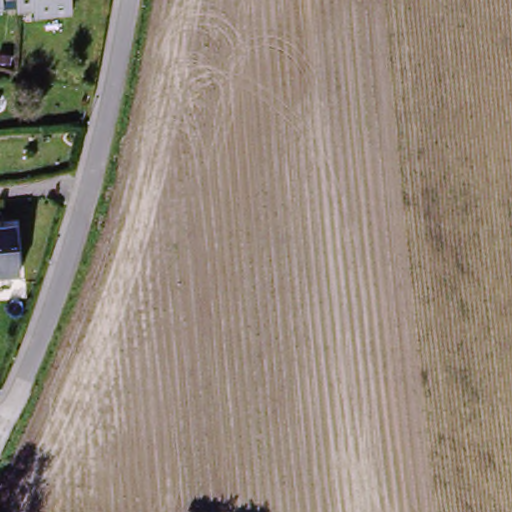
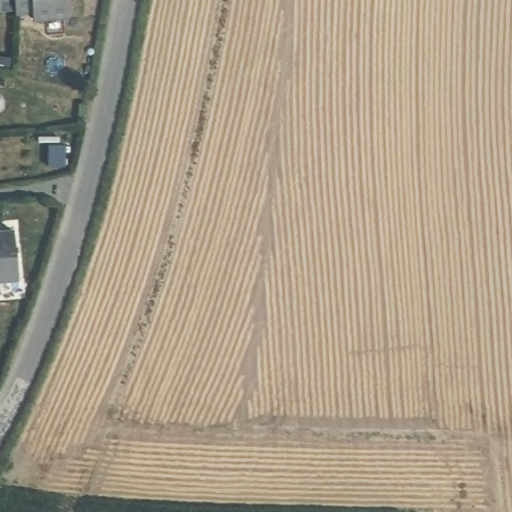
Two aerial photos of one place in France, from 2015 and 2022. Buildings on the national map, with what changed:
unchanged [(12,2),(0,3),(0,0),(12,0),(12,2)]
unchanged [(65,19),(26,22),(26,15),(13,16),(12,2),(12,0),(64,0),(65,19)]
unchanged [(19,280),(0,281),(0,230),(14,229),(19,280)]

